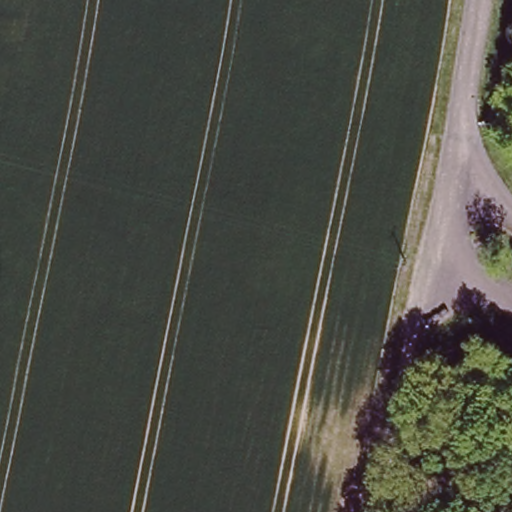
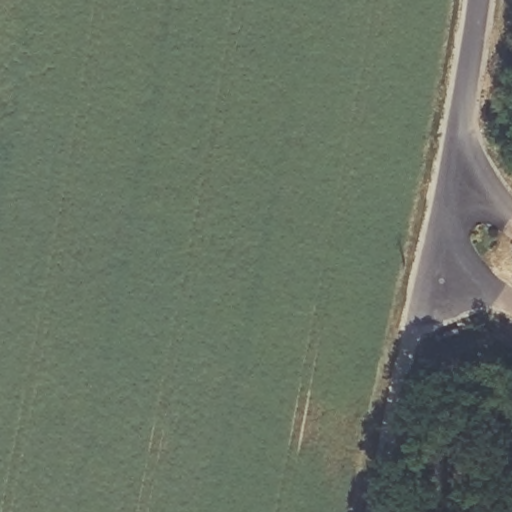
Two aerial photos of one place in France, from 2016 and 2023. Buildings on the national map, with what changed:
unchanged [(477,344),(480,355),(462,359),(459,348),(477,344)]

